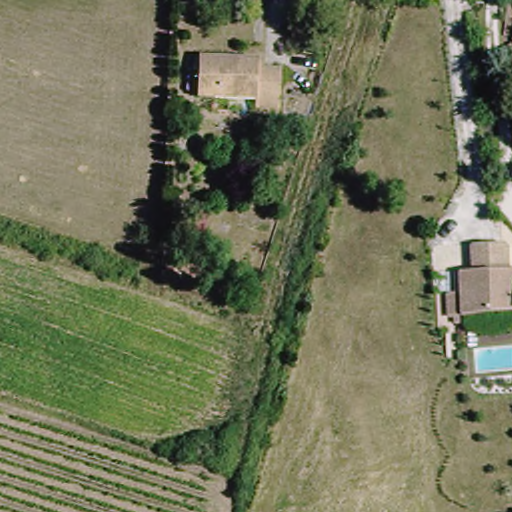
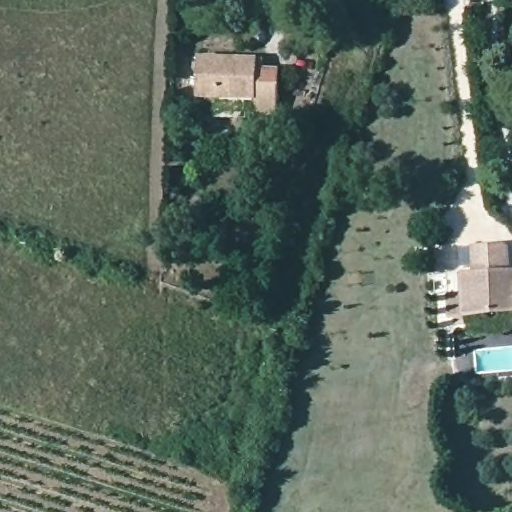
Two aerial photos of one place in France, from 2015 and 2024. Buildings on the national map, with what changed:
unchanged [(512,41),(512,48),(508,43),(512,41)]
unchanged [(259,70),(281,72),(277,112),(251,111),(252,95),(196,92),(198,56),(259,60),(259,70)]
unchanged [(471,242),(511,241),(511,271),(472,271),(471,242)]
unchanged [(465,290),(463,271),(472,271),(511,271),(512,271),(512,320),(467,320),(449,320),(444,291),(465,290)]

